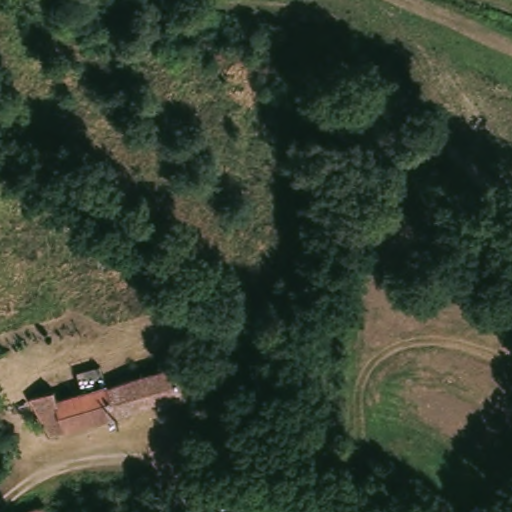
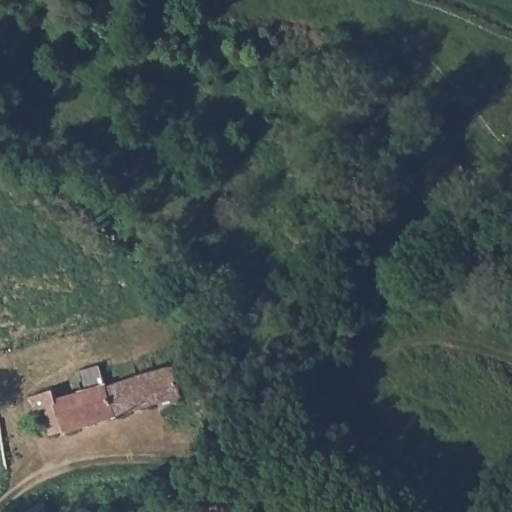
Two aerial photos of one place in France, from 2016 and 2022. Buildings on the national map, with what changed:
unchanged [(273,359),(258,369),(235,333),(250,323),(273,359)]
unchanged [(108,421),(100,395),(97,388),(167,367),(177,398),(108,421)]
unchanged [(108,421),(48,441),(25,409),(49,400),(54,411),(100,395),(108,421)]
unchanged [(205,512),(218,496),(223,500),(233,488),(242,496),(229,512),(205,512)]
unchanged [(31,512),(36,510),(37,512),(31,512)]

